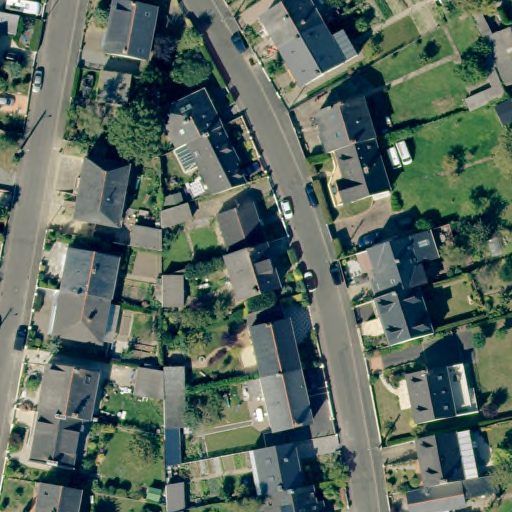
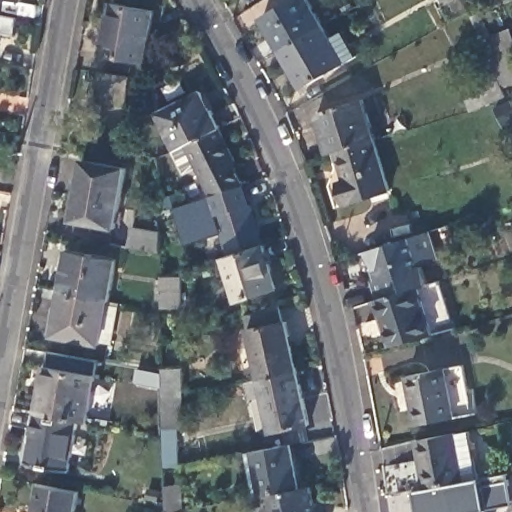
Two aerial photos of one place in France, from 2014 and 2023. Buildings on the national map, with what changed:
unchanged [(259,15),(285,0),(306,0),(319,22),(276,46),(259,15)]
unchanged [(443,6),(440,0),(454,0),(443,6)]
unchanged [(103,56),(112,5),(154,13),(145,64),(103,56)]
unchanged [(13,15),(11,27),(0,25),(0,12),(13,15)]
unchanged [(327,37),(341,29),(354,53),(340,60),(298,84),(276,46),(319,22),(327,37)]
unchanged [(494,65),(487,41),(508,32),(512,43),(512,86),(506,89),(494,65)]
unchanged [(486,96),(494,92),(490,84),(482,87),(477,76),(494,69),(506,97),(490,106),(486,96)]
unchanged [(128,80),(123,106),(94,101),(98,75),(128,80)]
unchanged [(157,111),(201,89),(218,125),(185,141),(175,146),(157,111)]
unchanged [(318,113),(363,101),(375,141),(338,152),(330,154),(318,113)]
unchanged [(218,125),(236,161),(233,163),(242,182),(211,192),(185,141),(218,125)]
unchanged [(375,141),(389,192),(344,205),(339,184),(346,182),(338,152),(375,141)]
unchanged [(72,217),(83,157),(126,166),(115,225),(72,217)]
unchanged [(191,221),(159,232),(159,215),(186,206),(191,221)]
unchanged [(217,216),(250,206),(262,246),(229,257),(217,216)]
unchanged [(431,222),(440,250),(423,255),(429,275),(419,277),(375,292),(370,273),(377,272),(368,242),(431,222)]
unchanged [(159,255),(127,249),(132,229),(159,234),(159,255)]
unchanged [(229,257),(262,246),(275,289),(236,302),(222,259),(229,257)]
unchanged [(67,247),(115,256),(108,297),(107,297),(59,288),(67,247)]
unchanged [(375,292),(419,277),(433,326),(384,340),(370,293),(375,292)]
unchanged [(180,278),(181,307),(160,307),(160,279),(180,278)]
unchanged [(107,297),(99,342),(51,332),(59,288),(107,297)]
unchanged [(278,306),(282,324),(285,323),(297,372),(260,380),(245,316),(278,306)]
unchanged [(459,384),(465,383),(470,408),(441,413),(406,421),(400,387),(397,373),(435,365),(454,361),(457,373),(459,384)]
unchanged [(46,363),(95,372),(86,418),(76,417),(37,409),(46,363)]
unchanged [(177,425),(178,462),(167,463),(167,438),(163,439),(163,433),(162,399),(132,393),(137,365),(161,369),(161,365),(182,365),(183,392),(184,425),(177,425)]
unchanged [(297,372),(309,426),(272,434),(260,380),(297,372)]
unchanged [(76,417),(66,465),(28,458),(37,409),(76,417)]
unchanged [(443,431),(462,427),(466,448),(457,450),(458,455),(467,453),(472,475),(420,485),(411,437),(443,431)]
unchanged [(296,441),(304,485),(266,492),(258,447),(296,441)]
unchanged [(409,512),(406,512),(403,492),(455,482),(454,480),(482,475),(485,492),(458,497),(459,503),(443,506),(444,512),(432,512),(432,508),(409,512)]
unchanged [(316,482),(322,511),(328,510),(328,512),(259,512),(256,498),(267,497),(266,492),(304,485),(316,482)]
unchanged [(79,512),(39,512),(44,485),(83,492),(79,512)]
unchanged [(183,512),(164,512),(164,508),(164,487),(182,487),(183,512)]

